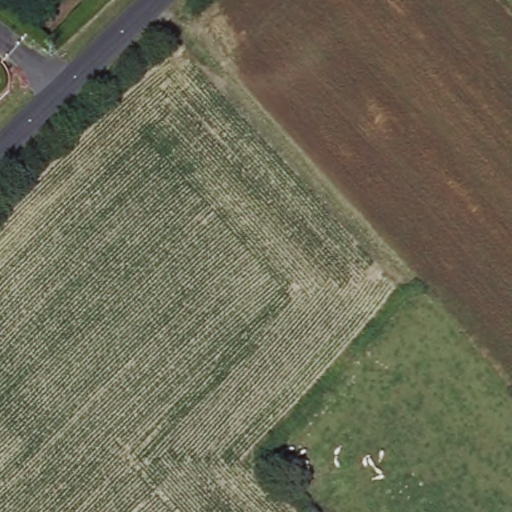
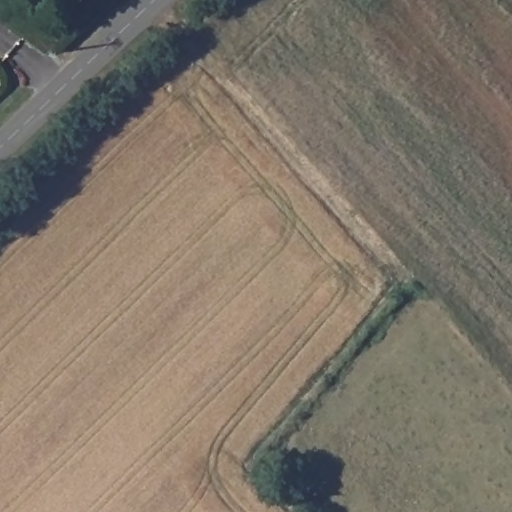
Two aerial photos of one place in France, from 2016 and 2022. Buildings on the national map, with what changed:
[]

